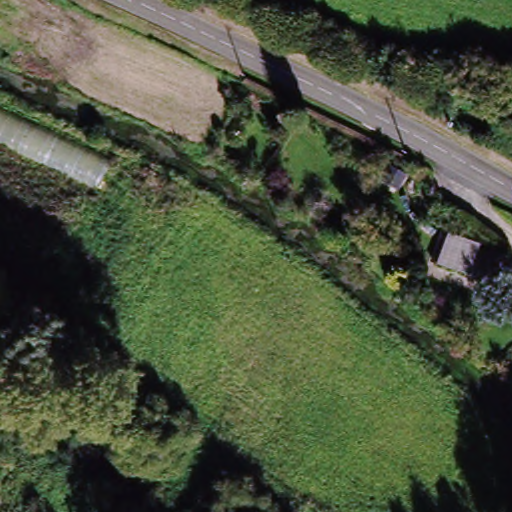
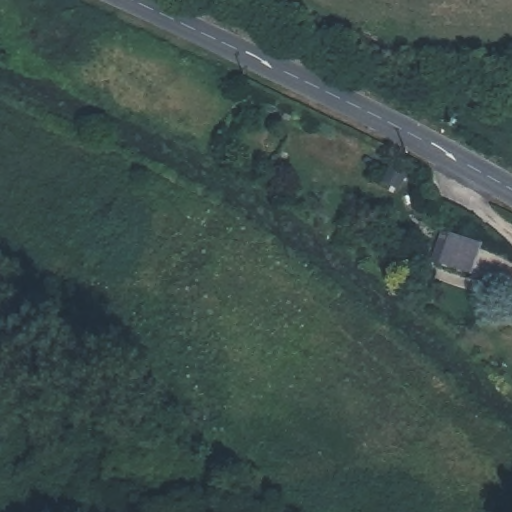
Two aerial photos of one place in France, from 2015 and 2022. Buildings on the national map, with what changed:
unchanged [(400,59),(410,65),(402,76),(393,69),(400,59)]
demolished [(104,196),(47,164),(2,146),(0,146),(0,106),(116,163),(104,196)]
unchanged [(476,253),(462,277),(433,258),(446,236),(476,253)]

